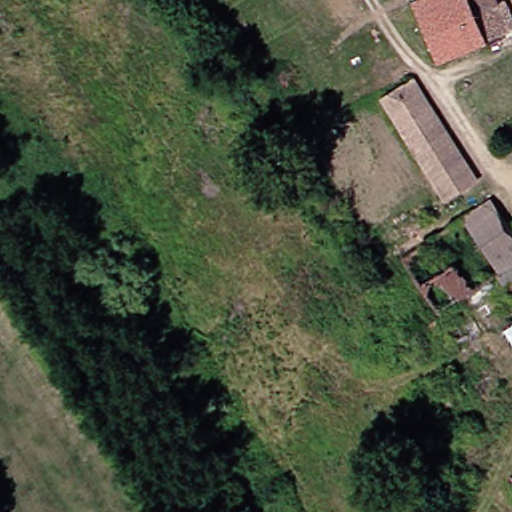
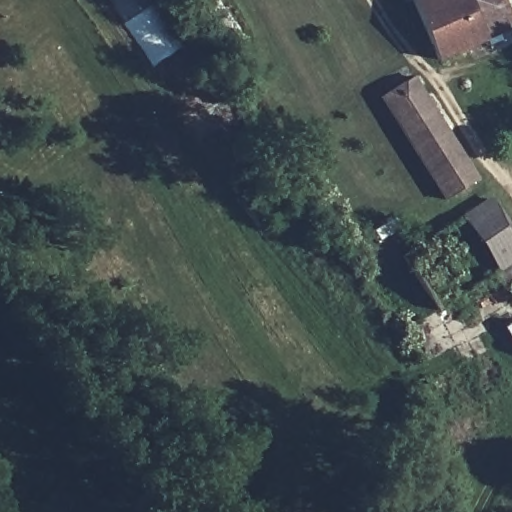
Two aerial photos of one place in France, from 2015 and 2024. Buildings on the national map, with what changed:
new [(110,0),(139,0),(173,54),(152,65),(110,0)]
unchanged [(447,56),(424,0),(509,0),(509,1),(512,8),(512,29),(447,56)]
unchanged [(471,189),(454,200),(391,98),(423,77),(475,161),(487,180),(471,189)]
unchanged [(465,215),(490,199),(510,228),(483,245),(465,215)]
unchanged [(504,286),(496,275),(500,272),(483,245),(510,228),(512,230),(512,281),(504,286)]
unchanged [(437,270),(452,260),(471,290),(438,316),(398,257),(417,245),(437,270)]

